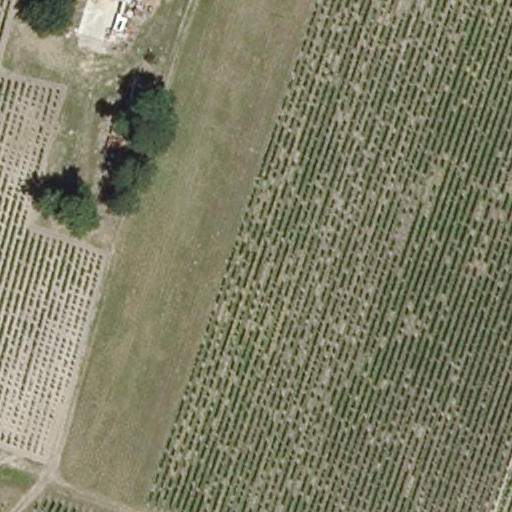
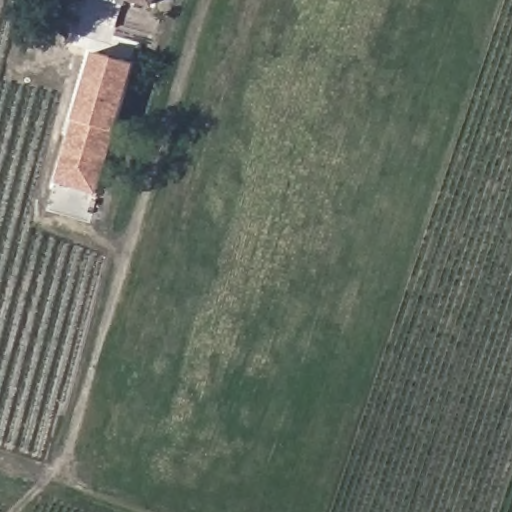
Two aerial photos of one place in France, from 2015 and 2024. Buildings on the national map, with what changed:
unchanged [(87,0),(129,0),(126,11),(87,1),(87,0)]
new [(98,195),(56,183),(95,51),(138,64),(98,195)]

